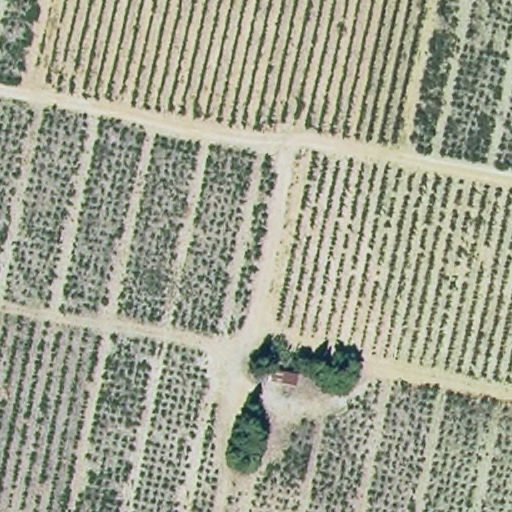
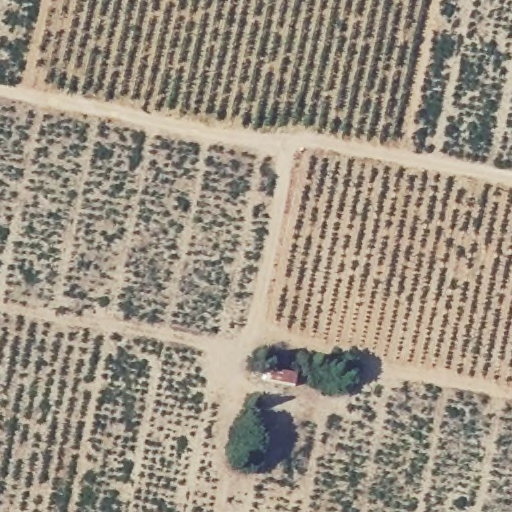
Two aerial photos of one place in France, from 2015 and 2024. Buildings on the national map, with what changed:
unchanged [(321,370),(320,391),(267,383),(270,363),(321,370)]

